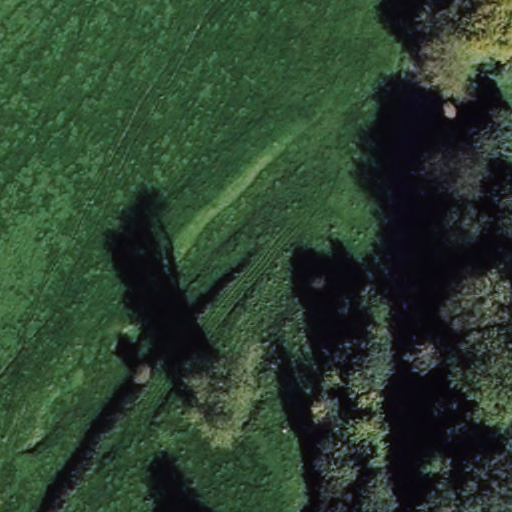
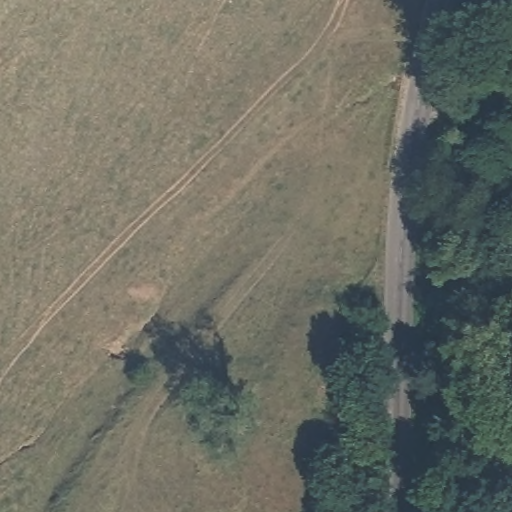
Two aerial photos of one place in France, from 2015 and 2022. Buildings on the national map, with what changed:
[]

